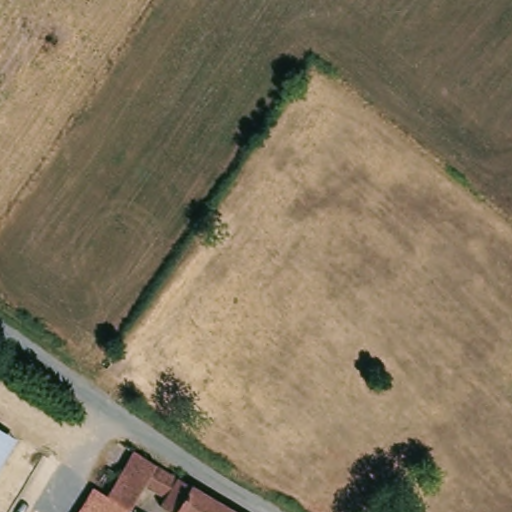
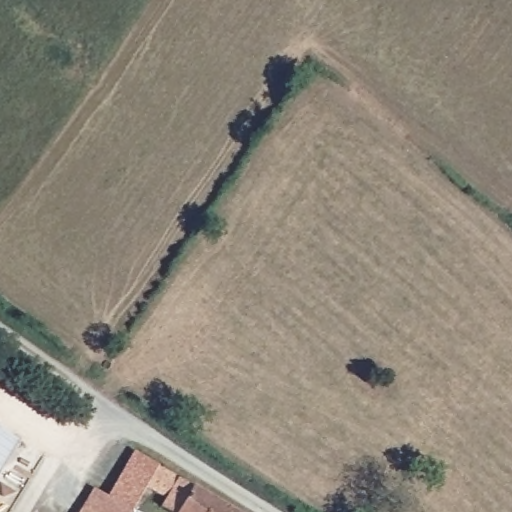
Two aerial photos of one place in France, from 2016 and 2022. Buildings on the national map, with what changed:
unchanged [(57,477),(35,512),(0,512),(0,441),(57,477)]
unchanged [(81,511),(95,489),(107,496),(135,451),(157,465),(178,478),(192,486),(192,487),(235,512),(170,512),(161,507),(166,498),(147,485),(131,511),(132,512),(80,512),(81,511)]

